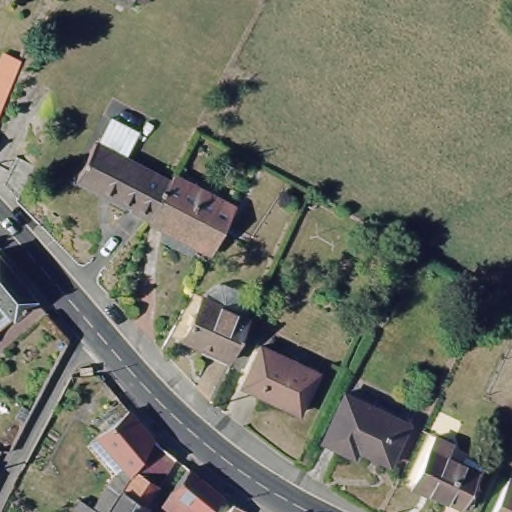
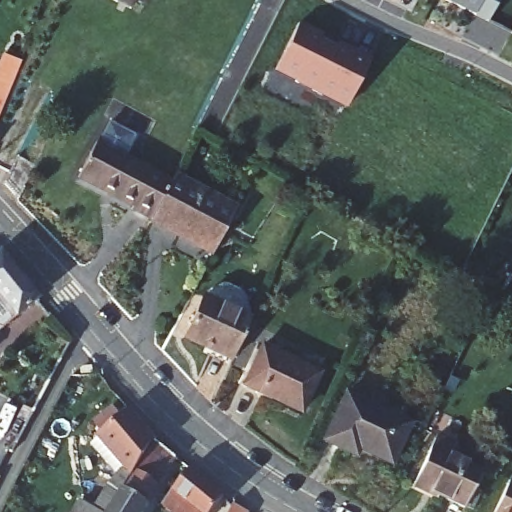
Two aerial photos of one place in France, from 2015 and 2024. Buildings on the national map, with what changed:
unchanged [(111,0),(150,0),(143,15),(111,0)]
new [(448,0),(495,0),(487,19),(448,0)]
new [(345,105),(273,69),(296,22),(319,35),(319,37),(333,44),(347,50),(348,49),(368,59),(345,105)]
unchanged [(18,59),(10,77),(0,104),(0,54),(0,52),(18,59)]
unchanged [(129,209),(131,206),(75,177),(89,150),(94,140),(99,131),(109,115),(139,131),(130,148),(125,156),(169,180),(149,220),(129,209)]
unchanged [(17,154),(35,164),(20,199),(5,180),(17,154)]
unchanged [(236,205),(211,252),(149,220),(169,180),(173,174),(236,205)]
unchanged [(5,325),(0,323),(0,252),(39,295),(5,325)]
unchanged [(229,357),(183,334),(202,292),(249,312),(248,316),(229,357)]
unchanged [(241,385),(260,347),(312,373),(295,411),(241,385)]
unchanged [(362,447),(358,453),(328,439),(351,394),(409,423),(391,460),(362,447)]
unchanged [(28,410),(37,415),(30,428),(21,423),(28,410)]
unchanged [(113,470),(106,464),(113,453),(99,441),(124,413),(151,440),(104,512),(87,512),(113,470)]
unchanged [(459,505),(412,482),(429,448),(435,435),(452,442),(446,455),(476,471),(459,505)]
unchanged [(151,440),(170,456),(171,456),(153,478),(153,490),(138,512),(104,512),(151,440)]
unchanged [(184,478),(188,472),(222,499),(211,512),(166,512),(161,510),(184,478)]
unchanged [(511,481),(512,481),(512,512),(497,512),(511,481)]
unchanged [(73,509),(74,505),(87,512),(71,512),(73,509)]
unchanged [(237,507),(247,512),(234,512),(237,507)]

